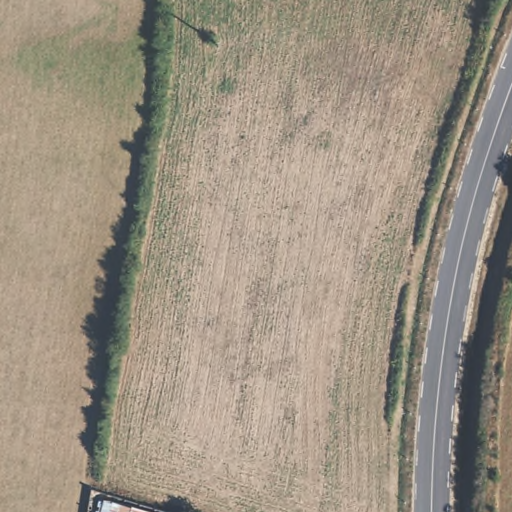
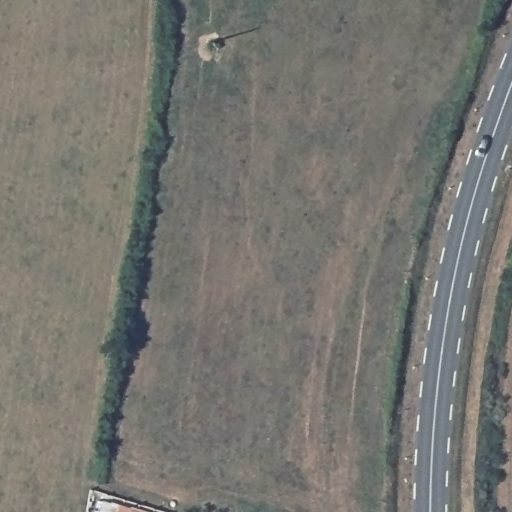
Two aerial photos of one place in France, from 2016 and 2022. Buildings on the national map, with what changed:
unchanged [(97,512),(98,507),(110,507),(129,512),(97,512)]
unchanged [(142,512),(131,512),(133,510),(142,512)]

